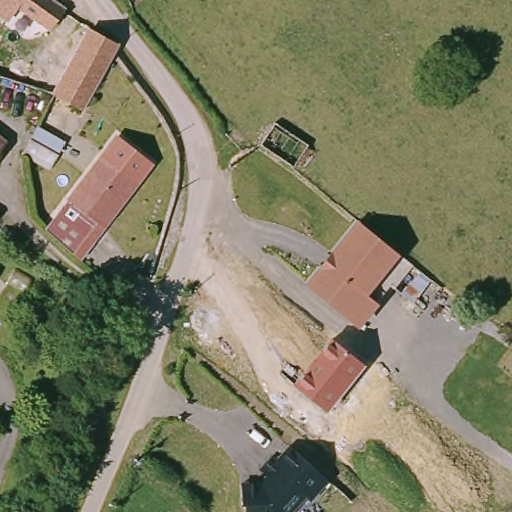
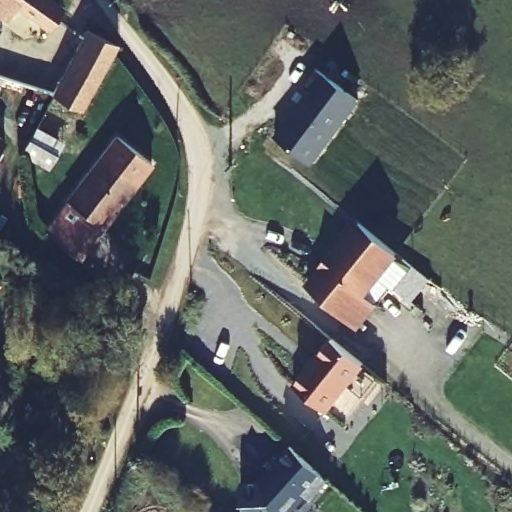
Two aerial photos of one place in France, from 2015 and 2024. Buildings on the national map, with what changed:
unchanged [(72,14),(60,35),(22,8),(10,25),(0,19),(0,0),(52,0),(72,14)]
unchanged [(97,30),(120,48),(85,112),(57,98),(97,30)]
unchanged [(10,67),(7,80),(0,79),(0,64),(10,67)]
new [(323,72),(361,100),(312,164),(275,136),(323,72)]
unchanged [(65,140),(49,171),(19,154),(36,125),(65,140)]
unchanged [(156,164),(80,262),(42,228),(116,132),(156,164)]
unchanged [(12,141),(0,158),(0,133),(12,141)]
unchanged [(390,238),(375,262),(388,270),(360,313),(306,277),(348,211),(390,238)]
unchanged [(365,366),(327,412),(293,384),(330,339),(365,366)]
unchanged [(315,500),(304,495),(289,512),(242,512),(240,480),(260,478),(263,473),(259,468),(269,457),(275,459),(288,443),(330,479),(315,500)]

